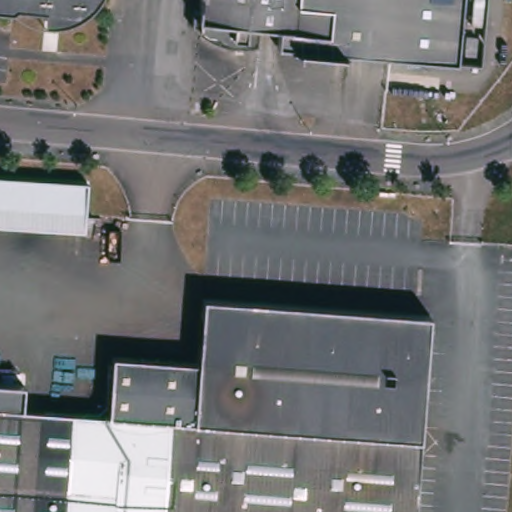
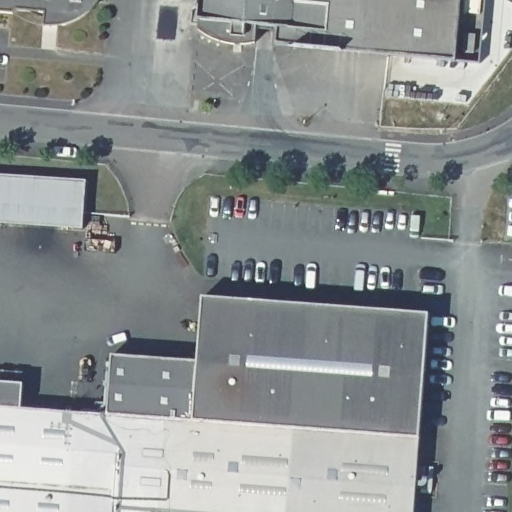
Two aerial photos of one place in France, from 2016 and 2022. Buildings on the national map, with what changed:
unchanged [(78,17),(64,21),(64,17),(44,15),(45,6),(19,4),(17,10),(0,8),(0,0),(98,0),(89,10),(84,12),(78,17)]
unchanged [(465,46),(463,65),(388,57),(284,46),(286,24),(258,21),(255,41),(237,41),(220,41),(206,35),(196,21),(188,19),(189,7),(198,9),(199,0),(470,0),(465,46)]
unchanged [(91,176),(87,224),(0,217),(0,168),(91,176)]
unchanged [(115,352),(189,360),(201,361),(208,292),(433,316),(415,512),(0,512),(0,377),(27,379),(25,404),(97,411),(98,398),(110,400),(115,352)]

